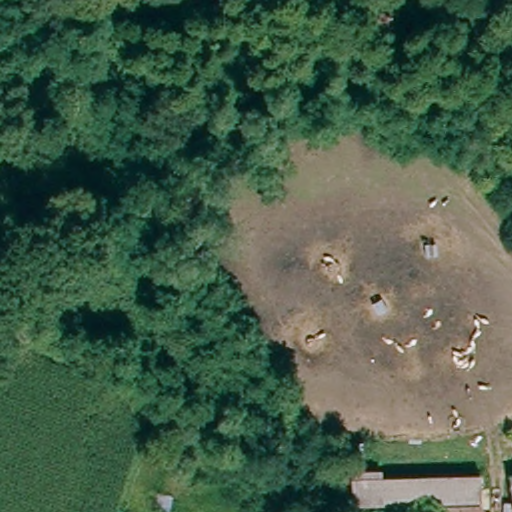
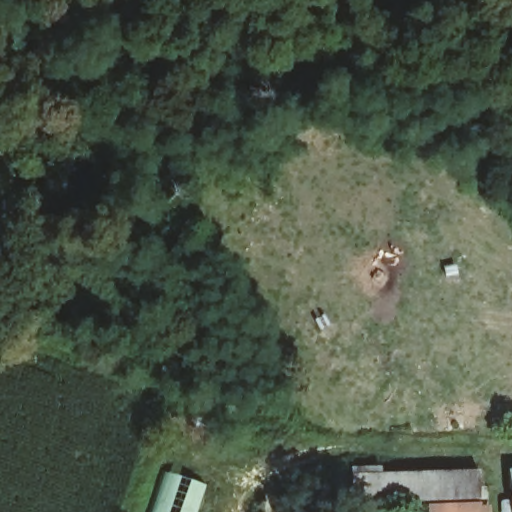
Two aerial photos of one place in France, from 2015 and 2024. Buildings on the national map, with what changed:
unchanged [(350,471),(376,471),(376,477),(473,472),(475,498),(360,503),(352,503),(351,494),(350,471)]
new [(162,472),(181,477),(171,507),(178,508),(177,512),(150,512),(162,472)]
unchanged [(512,478),(512,492),(509,478),(512,478)]
new [(178,508),(188,480),(206,485),(197,512),(177,512),(178,508)]
unchanged [(476,512),(430,512),(429,507),(475,505),(476,512)]

